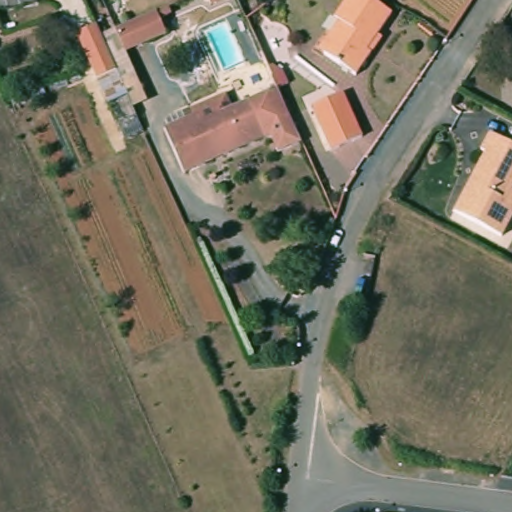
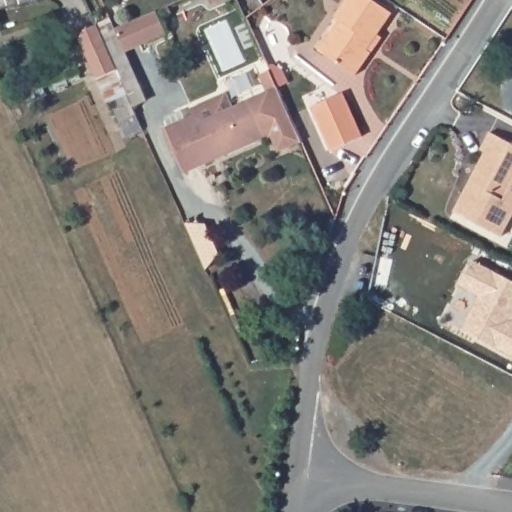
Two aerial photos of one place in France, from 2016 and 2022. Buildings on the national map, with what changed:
unchanged [(221,1),(221,0),(223,0),(221,1)]
unchanged [(324,52),(330,42),(330,41),(332,39),(327,35),(348,0),(374,0),(389,11),(374,38),(379,41),(366,66),(359,77),(324,52)]
unchanged [(174,28),(133,50),(121,26),(142,16),(163,6),(174,28)]
unchanged [(112,120),(94,79),(96,78),(76,33),(94,25),(114,69),(134,109),(141,126),(120,137),(112,120)]
unchanged [(364,136),(329,150),(312,104),(345,91),(364,136)]
unchanged [(267,144),(227,158),(223,148),(207,155),(211,166),(182,177),(164,131),(197,117),(199,123),(249,102),(267,144)]
unchanged [(483,150),(479,148),(487,133),(512,145),(512,183),(504,201),(512,205),(512,212),(502,235),(452,211),(463,189),(467,181),(483,150)]
new [(512,280),(512,356),(461,330),(479,295),(461,286),(474,260),(512,280)]

